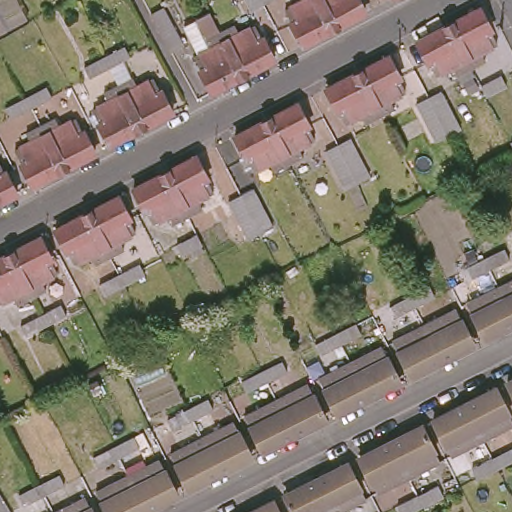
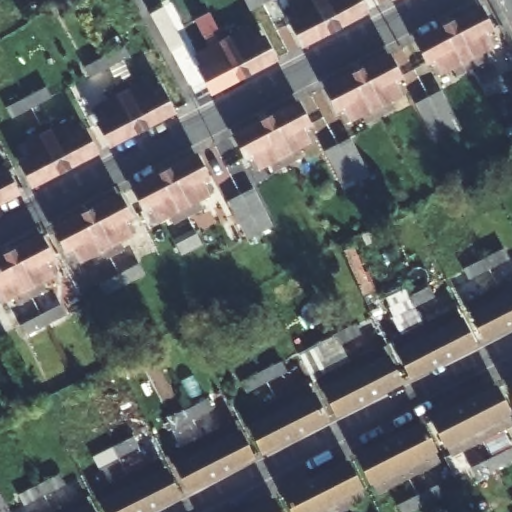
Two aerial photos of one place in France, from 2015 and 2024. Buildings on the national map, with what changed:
unchanged [(246,9),(241,0),(265,0),(246,9)]
unchanged [(335,28),(304,44),(292,22),(300,18),(294,4),(301,0),(322,0),(335,28)]
unchanged [(366,12),(335,28),(322,0),(360,0),(366,12)]
unchanged [(259,9),(265,5),(270,2),(277,14),(271,17),(265,21),(259,9)]
unchanged [(448,24),(461,17),(480,8),(489,26),(482,30),(489,46),(465,58),(448,24)]
unchanged [(442,71),(434,56),(426,60),(415,41),(448,24),(465,58),(442,71)]
unchanged [(249,28),(255,41),(264,37),(275,59),(245,75),(227,39),(249,28)]
unchanged [(503,53),(497,40),(504,36),(510,50),(503,53)]
unchanged [(245,75),(213,91),(202,69),(209,65),(202,52),(227,39),(245,75)]
unchanged [(172,53),(179,50),(185,62),(179,65),(172,53)]
unchanged [(360,70),(364,68),(389,55),(399,74),(390,79),(399,93),(377,104),(360,70)]
unchanged [(170,71),(162,75),(155,63),(162,59),(170,71)]
unchanged [(352,117),(344,103),(336,107),(326,88),(360,70),(377,104),(352,117)]
unchanged [(147,81),(155,93),(162,89),(174,110),(165,115),(142,127),(124,93),(147,81)]
unchanged [(440,88),(461,130),(434,144),(414,102),(440,88)]
unchanged [(142,127),(117,140),(110,144),(99,122),(105,118),(100,105),(124,93),(142,127)]
unchanged [(78,119),(71,106),(77,102),(84,99),(92,112),(84,115),(78,119)]
unchanged [(265,119),(267,119),(297,103),(308,122),(300,126),(307,140),(283,153),(265,119)]
unchanged [(260,165),(253,152),(245,156),(234,135),(265,119),(283,153),(260,165)]
unchanged [(67,123),(74,135),(81,131),(93,153),(69,165),(65,168),(46,134),(67,123)]
unchanged [(322,131),(328,128),(334,125),(340,138),(335,141),(329,144),(322,131)]
unchanged [(65,168),(32,185),(20,163),(29,159),(22,146),(46,134),(65,168)]
unchanged [(352,137),(370,177),(342,189),(324,150),(352,137)]
unchanged [(0,159),(0,158),(0,142),(7,139),(13,152),(7,155),(0,159)]
unchanged [(170,166),(175,164),(201,150),(212,171),(204,175),(210,188),(187,200),(170,166)]
unchanged [(163,213),(156,199),(149,203),(138,182),(170,166),(187,200),(163,213)]
unchanged [(5,171),(17,192),(0,201),(0,174),(5,171)]
unchanged [(238,174),(245,187),(239,191),(233,194),(226,180),(232,177),(238,174)]
unchanged [(253,187),(274,228),(247,240),(227,200),(253,187)]
unchanged [(82,212),(113,196),(123,217),(115,221),(122,234),(99,246),(82,212)]
unchanged [(79,256),(72,244),(65,247),(54,226),(67,219),(82,212),(99,246),(79,256)]
unchanged [(152,217),(159,231),(154,233),(147,220),(152,217)]
unchanged [(137,242),(130,228),(137,225),(144,238),(137,242)]
unchanged [(4,253),(19,245),(35,236),(47,257),(40,261),(45,273),(20,286),(4,253)]
unchanged [(461,265),(480,255),(501,245),(506,256),(486,266),(466,276),(461,265)]
unchanged [(0,296),(0,255),(4,253),(20,286),(0,296)]
unchanged [(55,267),(61,264),(67,261),(73,274),(67,277),(62,280),(55,267)]
unchanged [(512,318),(497,288),(512,281),(512,318)]
unchanged [(387,304),(407,293),(427,283),(433,293),(413,304),(392,314),(387,304)]
unchanged [(512,324),(482,339),(465,305),(497,288),(512,318),(512,324)]
unchanged [(453,311),(470,345),(440,360),(424,326),(453,311)]
unchanged [(314,341),(334,331),(354,320),(359,332),(339,342),(319,352),(314,341)]
unchanged [(440,360),(437,362),(409,377),(390,343),(424,326),(440,360)]
unchanged [(380,347),(398,382),(367,398),(350,363),(380,347)]
unchanged [(240,380),(260,370),(280,359),(285,370),(265,380),(245,390),(240,380)]
unchanged [(367,398),(360,402),(334,415),(317,380),(350,363),(367,398)]
unchanged [(512,378),(512,398),(504,382),(512,378)]
unchanged [(307,385),(325,420),(320,422),(293,436),(275,401),(307,385)]
unchanged [(462,403),(477,395),(494,387),(512,422),(480,439),(462,403)]
unchanged [(164,418),(185,408),(204,398),(209,409),(190,418),(170,429),(164,418)]
unchanged [(293,436),(282,442),(260,452),(244,417),(275,401),(293,436)]
unchanged [(448,456),(430,420),(438,416),(462,403),(480,439),(448,456)]
unchanged [(232,424),(249,458),(242,461),(218,474),(200,439),(232,424)]
unchanged [(388,441),(399,435),(420,425),(437,461),(407,476),(388,441)]
unchanged [(90,457),(110,447),(132,436),(137,446),(115,457),(95,467),(90,457)]
unchanged [(218,474),(204,481),(185,491),(167,456),(200,439),(218,474)]
unchanged [(375,493),(357,457),(360,456),(388,441),(407,476),(375,493)]
unchanged [(490,456),(510,446),(512,451),(512,458),(495,467),(475,476),(470,466),(490,456)]
unchanged [(157,461),(175,496),(165,501),(144,512),(125,477),(157,461)]
unchanged [(321,475),(346,462),(365,498),(338,512),(331,512),(315,479),(321,475)]
unchanged [(16,494),(35,484),(55,474),(62,485),(41,495),(22,505),(16,494)]
unchanged [(103,512),(94,493),(125,477),(144,512),(103,512)]
unchanged [(315,479),(331,512),(291,512),(282,495),(315,479)]
unchanged [(416,493),(437,483),(442,494),(422,504),(407,512),(398,512),(395,505),(416,493)]
unchanged [(270,496),(278,512),(240,512),(243,510),(270,496)]
unchanged [(88,512),(59,512),(82,500),(88,512)]

